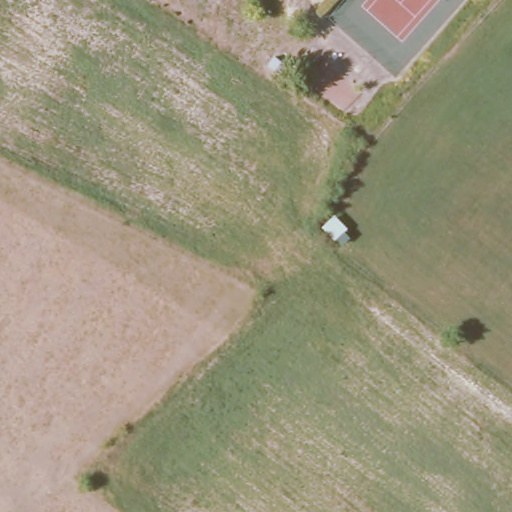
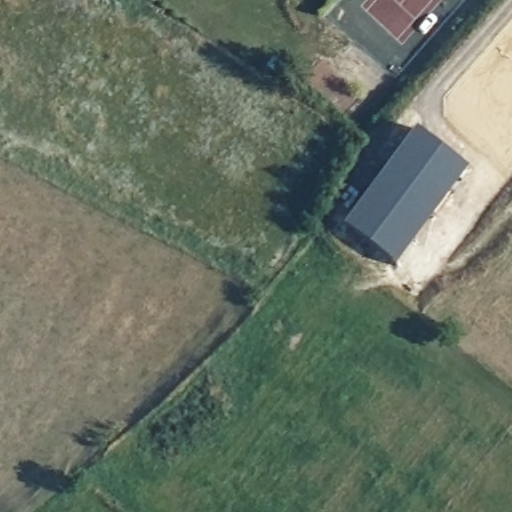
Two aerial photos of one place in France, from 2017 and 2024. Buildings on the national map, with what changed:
new [(346,226),(417,130),(470,168),(397,266),(346,226)]

